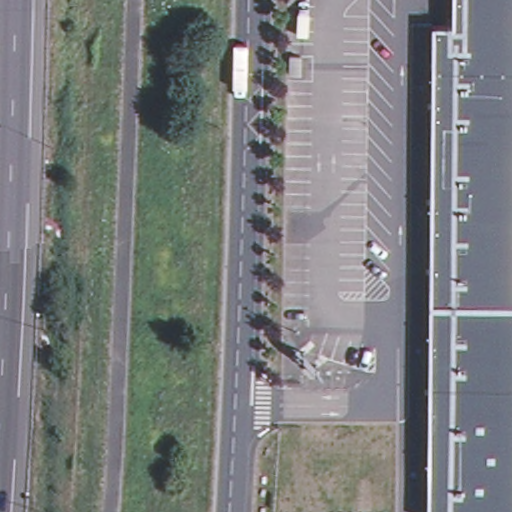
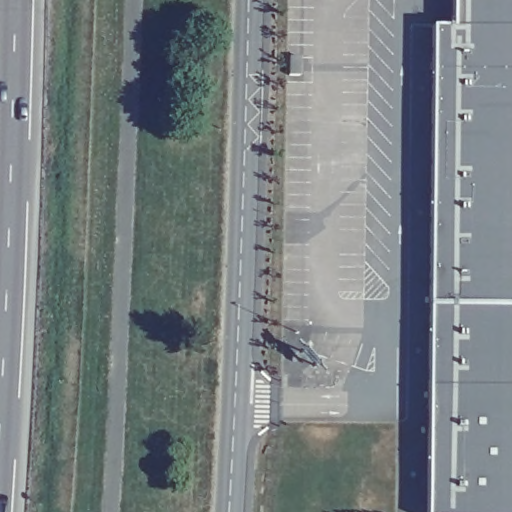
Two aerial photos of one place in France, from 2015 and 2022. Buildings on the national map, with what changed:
unchanged [(452,25),(453,0),(512,0),(512,512),(428,512),(432,25),(452,25)]

